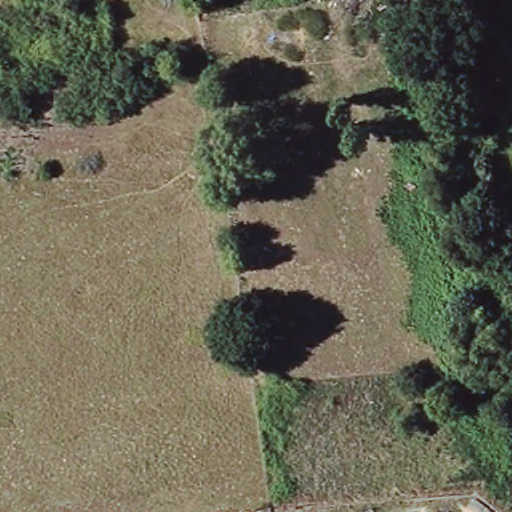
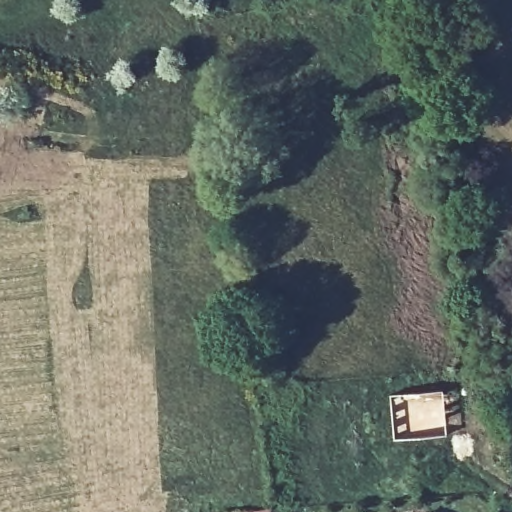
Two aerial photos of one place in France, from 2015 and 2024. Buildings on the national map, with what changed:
unchanged [(377,30),(370,0),(407,0),(412,24),(377,30)]
new [(442,389),(447,436),(392,441),(388,394),(442,389)]

